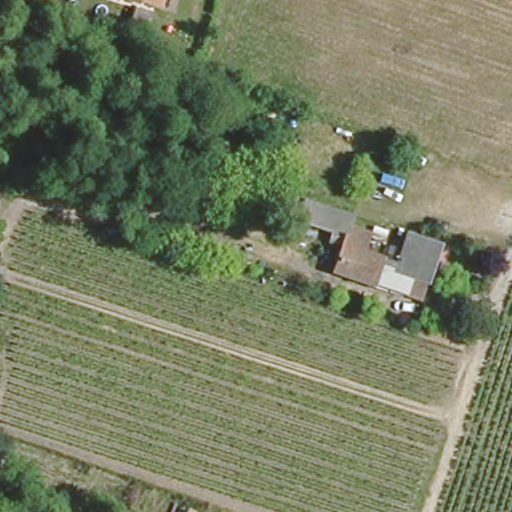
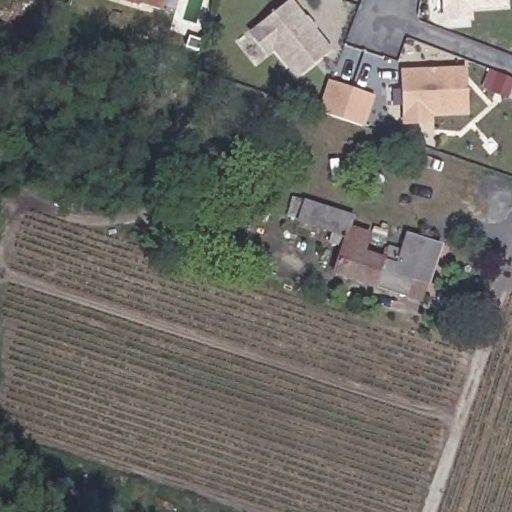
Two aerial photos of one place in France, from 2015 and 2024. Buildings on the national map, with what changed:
new [(442,0),(507,0),(508,8),(472,10),(472,19),(443,20),(442,0)]
new [(297,76),(273,48),(267,54),(252,31),(291,1),(330,50),(297,76)]
new [(432,123),(402,124),(401,69),(466,67),(468,114),(432,115),(432,123)]
new [(362,128),(342,120),(322,112),(332,84),(352,91),(372,99),(362,128)]
unchanged [(416,292),(327,262),(341,226),(300,212),(306,194),(356,210),(351,226),(362,230),(356,252),(380,260),(387,242),(401,246),(407,229),(447,242),(432,283),(428,296),(416,292)]

